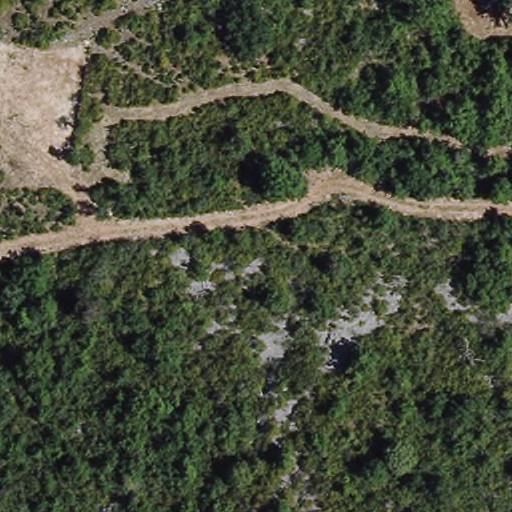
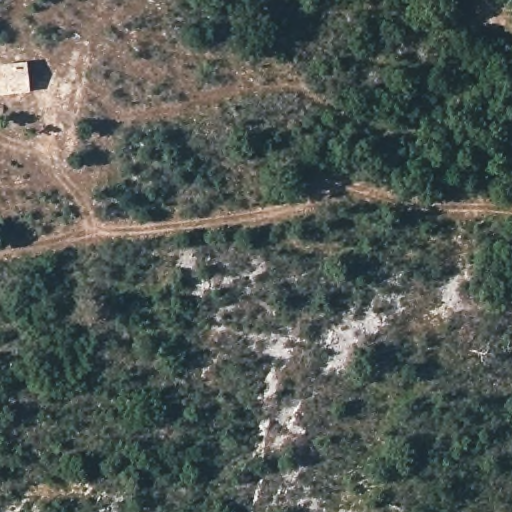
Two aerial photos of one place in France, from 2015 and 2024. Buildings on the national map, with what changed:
new [(26,60),(29,90),(0,94),(0,63),(26,60)]

